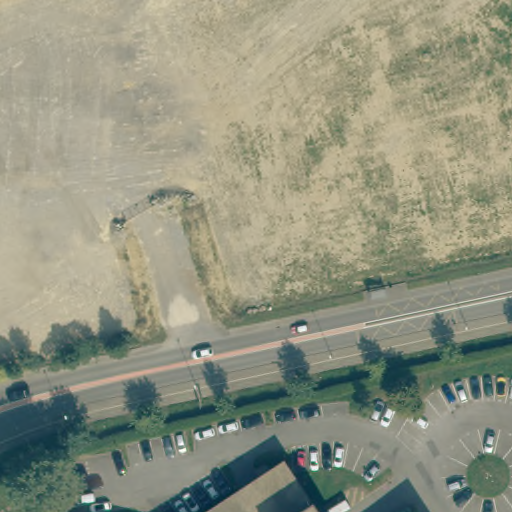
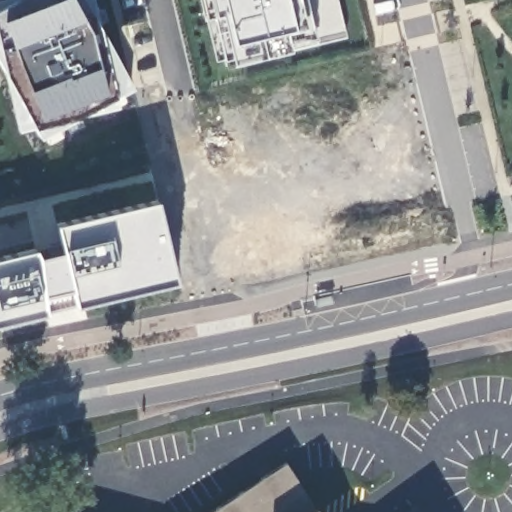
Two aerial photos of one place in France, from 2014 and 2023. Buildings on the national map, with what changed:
new [(0,5),(10,0),(82,0),(102,46),(112,94),(80,115),(31,123),(0,40),(0,5)]
new [(211,0),(303,0),(312,34),(284,39),(287,48),(234,62),(214,14),(211,0)]
new [(52,222),(152,197),(172,281),(11,318),(0,321),(0,257),(56,243),(52,222)]
unchanged [(318,512),(220,512),(287,466),(318,512)]

